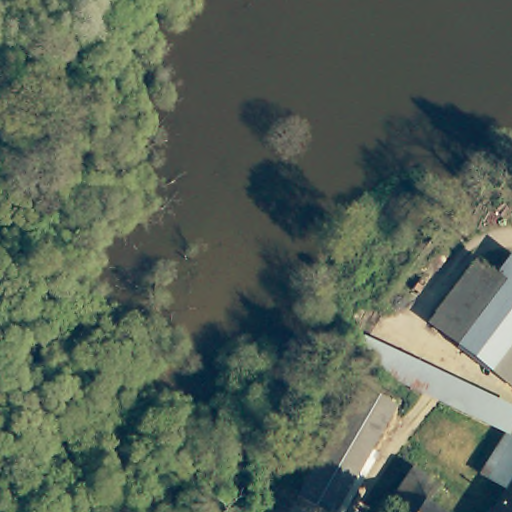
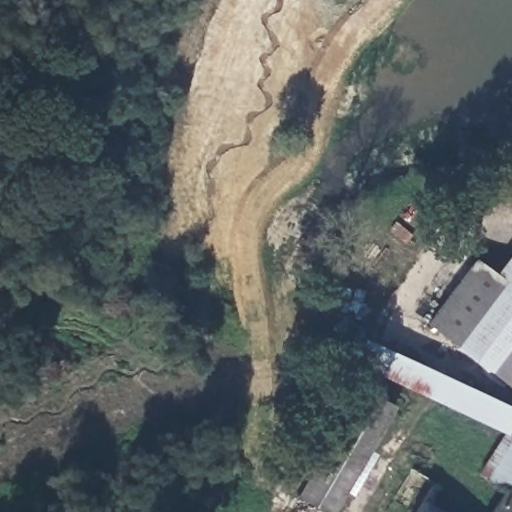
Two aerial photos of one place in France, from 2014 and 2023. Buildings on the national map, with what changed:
unchanged [(485,373),(452,348),(492,280),(512,256),(512,337),(485,373)]
unchanged [(452,348),(423,327),(470,264),(492,280),(452,348)]
unchanged [(347,364),(361,337),(512,409),(512,424),(506,438),(503,435),(502,437),(347,364)]
unchanged [(485,373),(512,337),(512,393),(485,373)]
unchanged [(325,512),(314,506),(377,397),(399,410),(340,512),(325,512)]
unchanged [(501,493),(476,477),(502,437),(503,435),(506,438),(512,441),(512,476),(501,493)]
unchanged [(414,512),(382,512),(407,472),(433,489),(422,506),(419,504),(414,512)]
unchanged [(489,512),(501,493),(512,476),(512,512),(489,512)]
unchanged [(422,506),(431,512),(414,512),(419,504),(422,506)]

